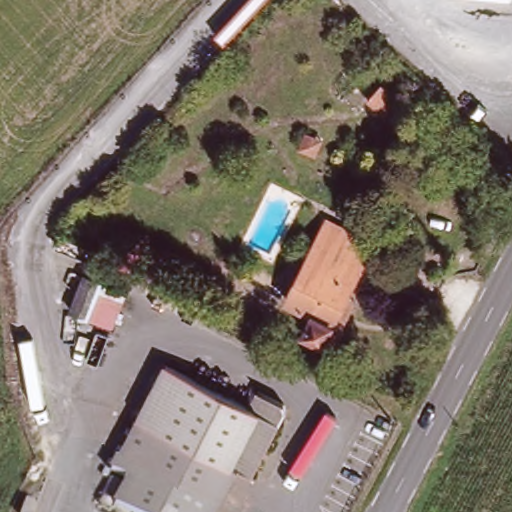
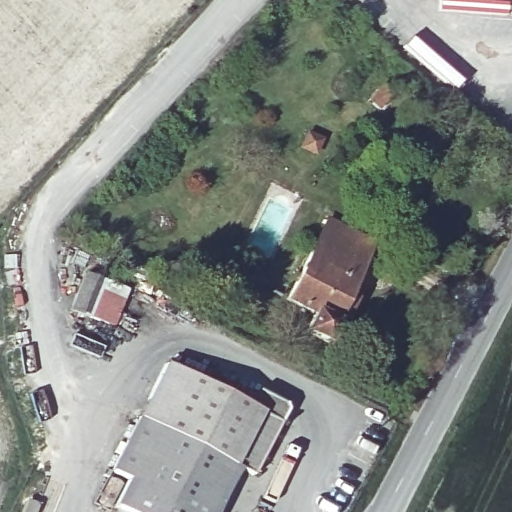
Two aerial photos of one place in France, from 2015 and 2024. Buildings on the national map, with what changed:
unchanged [(372,249),(324,347),(305,337),(314,319),(288,305),(326,225),(372,249)]
unchanged [(235,268),(241,257),(250,263),(244,274),(235,268)]
unchanged [(70,310),(85,276),(102,283),(87,317),(70,310)]
unchanged [(177,351),(289,412),(251,482),(241,477),(140,424),(146,410),(177,351)]
unchanged [(115,511),(128,486),(112,478),(140,424),(241,477),(220,512),(117,512),(115,511)]
unchanged [(40,506),(37,512),(21,512),(20,511),(28,499),(40,506)]

